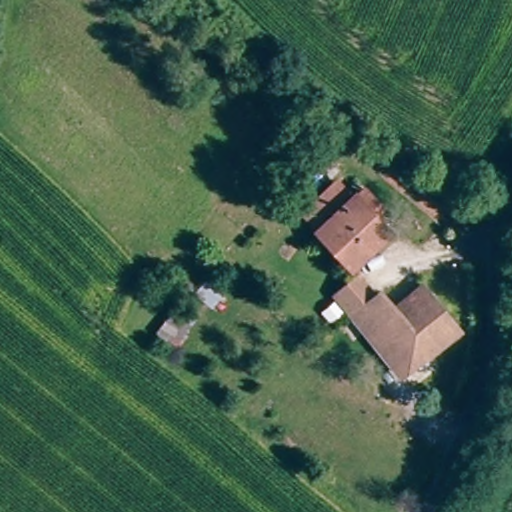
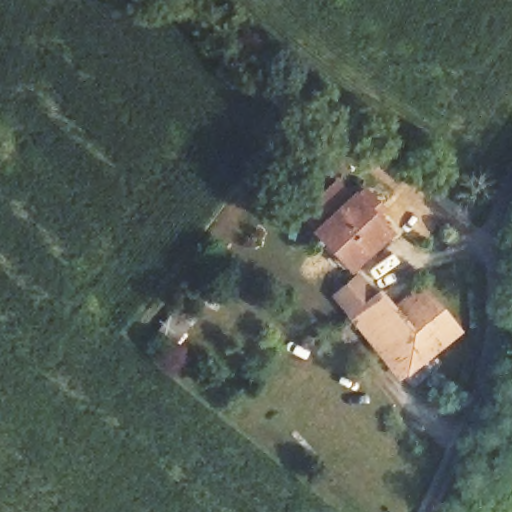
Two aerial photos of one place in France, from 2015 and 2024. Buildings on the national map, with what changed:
unchanged [(308,222),(346,185),(360,199),(321,236),(308,222)]
unchanged [(395,235),(357,272),(321,236),(360,199),(395,235)]
unchanged [(237,249),(253,263),(234,281),(230,285),(216,272),(235,252),(237,249)]
unchanged [(416,288),(452,332),(396,378),(348,320),(330,299),(352,279),(370,300),(375,295),(388,312),(416,288)]
unchanged [(272,407),(263,419),(250,408),(258,396),(272,407)]

